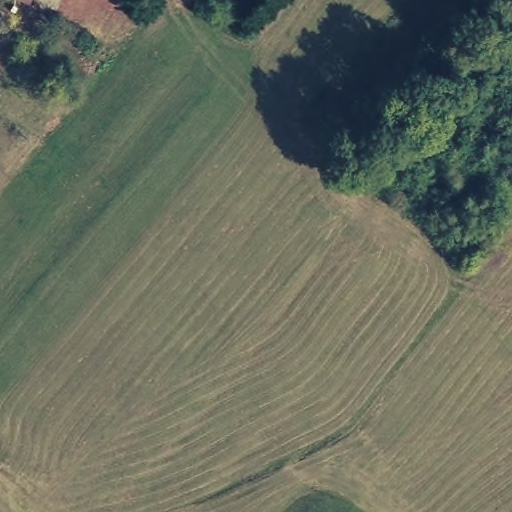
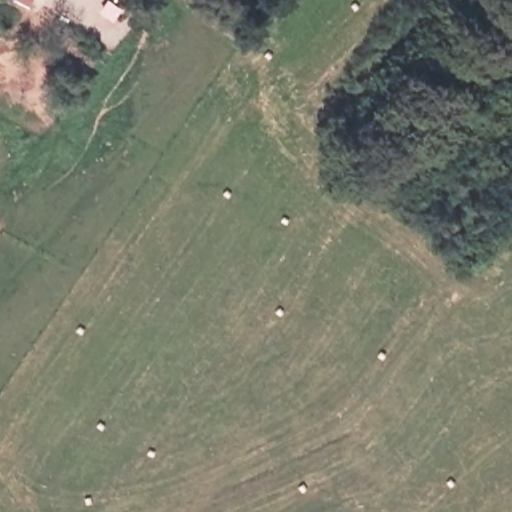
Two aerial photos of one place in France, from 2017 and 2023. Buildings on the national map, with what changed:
[]

